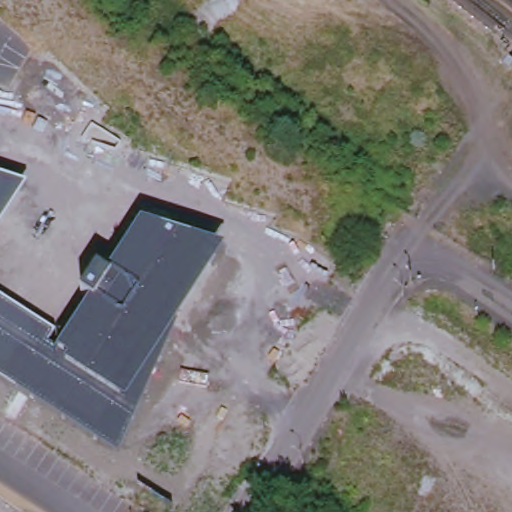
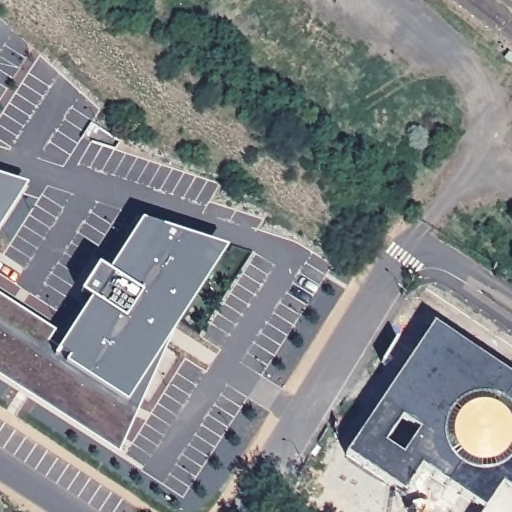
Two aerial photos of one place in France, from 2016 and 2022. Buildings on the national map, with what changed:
unchanged [(0,228),(0,176),(27,186),(0,228)]
unchanged [(50,342),(63,348),(91,305),(81,298),(102,268),(110,272),(143,221),(228,250),(160,355),(116,452),(0,376),(0,295),(56,331),(50,342)]
new [(487,504),(425,458),(406,486),(350,448),(437,318),(512,370),(512,512),(482,512),(487,504)]

